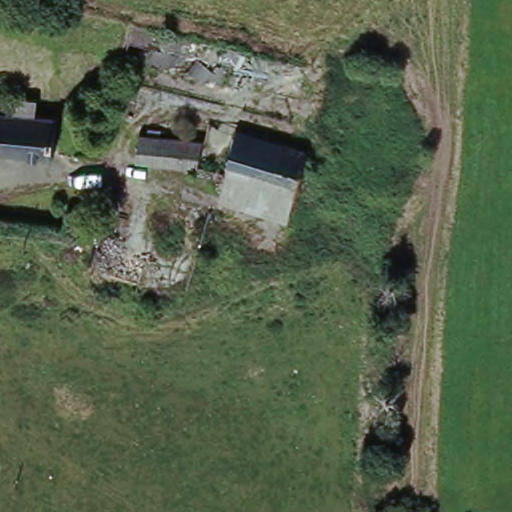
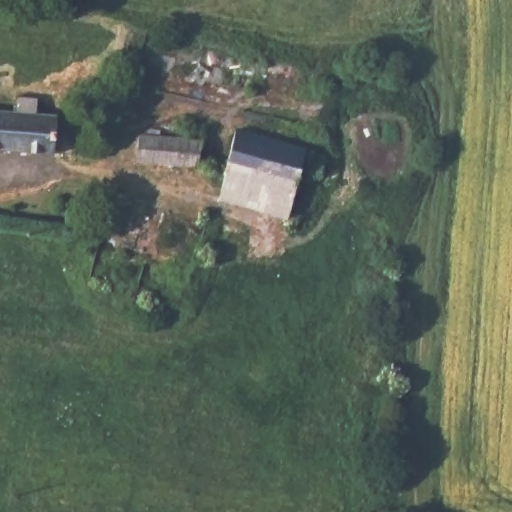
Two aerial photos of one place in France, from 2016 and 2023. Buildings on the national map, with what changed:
unchanged [(52,158),(0,155),(0,114),(60,118),(52,158)]
unchanged [(227,180),(198,173),(139,167),(142,139),(207,145),(212,127),(310,154),(292,224),(222,204),(227,180)]

